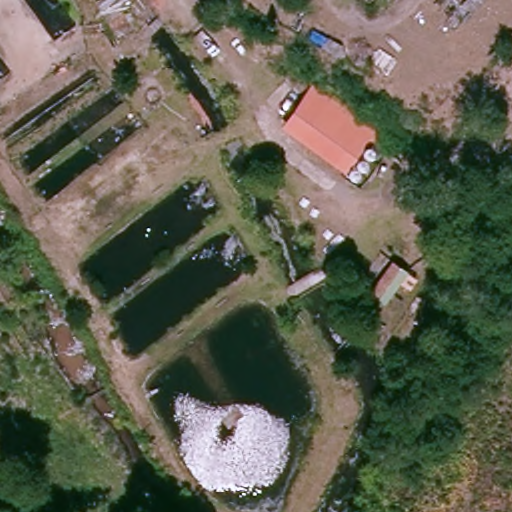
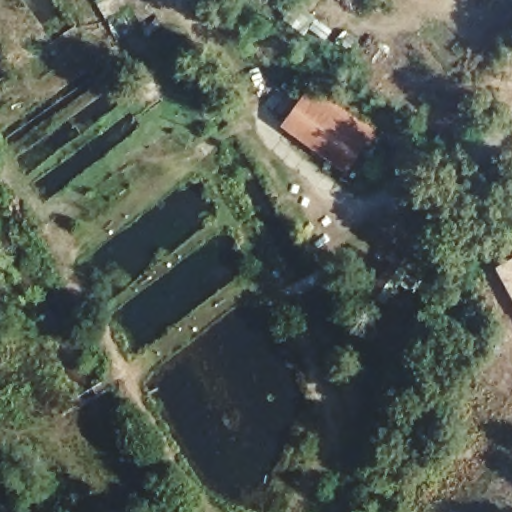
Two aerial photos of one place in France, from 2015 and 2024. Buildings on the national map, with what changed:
unchanged [(317,104),(364,142),(359,152),(336,176),(289,136),(311,110),(317,104)]
unchanged [(387,256),(409,276),(386,303),(363,281),(387,256)]
new [(512,257),(512,300),(493,267),(512,257)]

